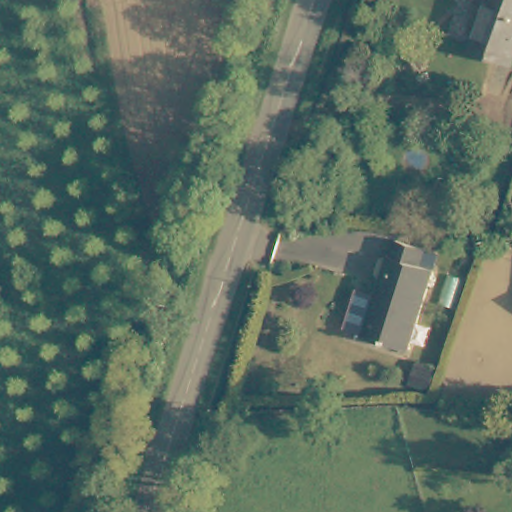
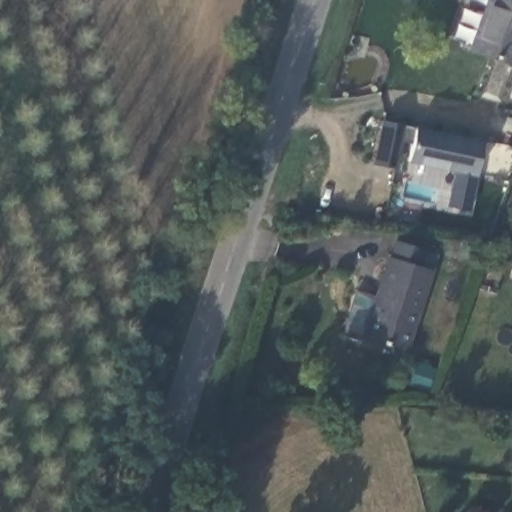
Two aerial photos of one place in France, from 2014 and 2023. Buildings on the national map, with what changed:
unchanged [(512,66),(473,52),(489,0),(512,0),(512,65),(512,66)]
new [(416,126),(483,141),(477,176),(479,176),(472,212),(449,208),(456,171),(409,161),(416,126)]
unchanged [(362,339),(371,308),(375,309),(383,279),(380,278),(383,265),(387,266),(393,242),(423,251),(419,266),(432,271),(409,353),(362,339)]

